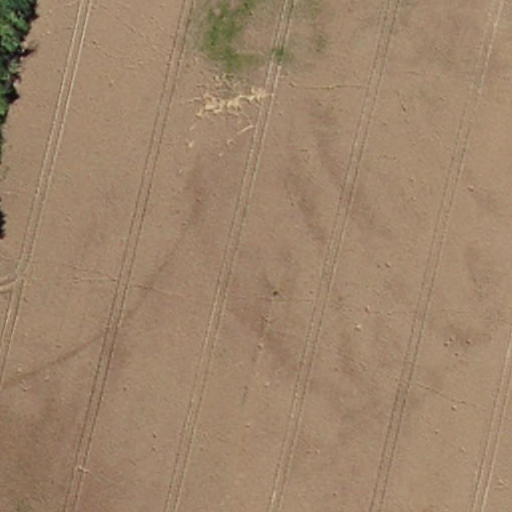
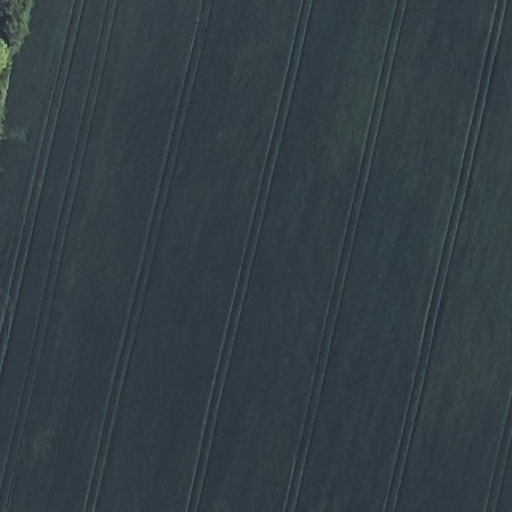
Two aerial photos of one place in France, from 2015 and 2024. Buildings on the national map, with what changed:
[]

